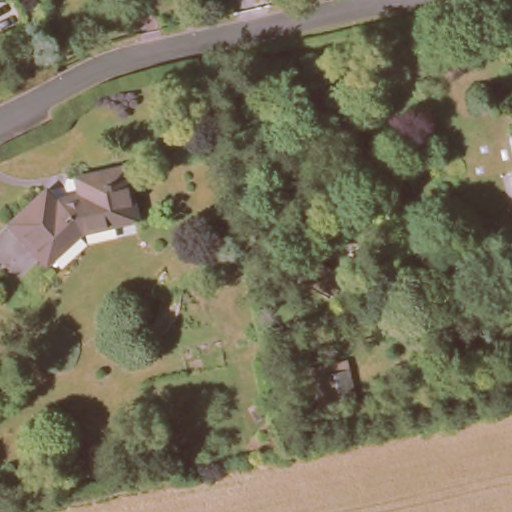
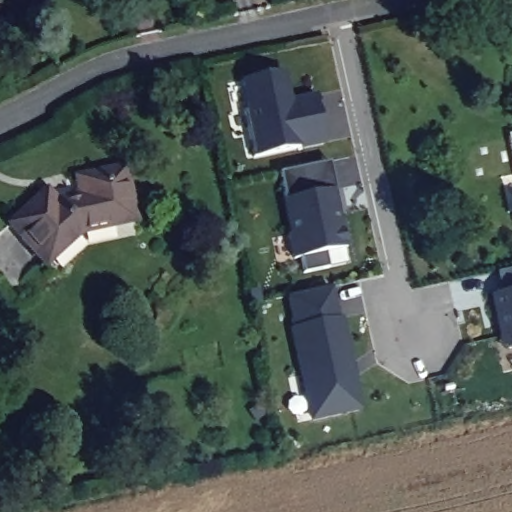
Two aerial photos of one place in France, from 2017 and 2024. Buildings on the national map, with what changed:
new [(316,112),(323,144),(252,160),(242,112),(247,112),(241,82),(282,74),(292,117),(316,112)]
new [(316,97),(319,112),(316,113),(316,112),(292,117),(289,103),(316,97)]
unchanged [(512,133),(512,158),(507,135),(512,133)]
new [(334,210),(335,217),(338,217),(344,250),(324,254),(326,270),(301,275),(297,260),(291,261),(285,237),(289,236),(276,175),(306,168),(329,164),(334,191),(339,209),(334,210)]
unchanged [(78,198),(74,181),(121,170),(133,222),(81,233),(73,199),(78,198)]
unchanged [(9,224),(45,192),(53,202),(73,199),(81,233),(76,234),(41,262),(9,224)]
demolished [(299,275),(311,257),(341,276),(330,294),(299,275)]
new [(512,270),(512,347),(511,347),(501,337),(492,296),(501,293),(497,273),(512,270)]
new [(329,288),(336,319),(340,319),(350,366),(349,366),(352,381),(351,381),(357,410),(311,420),(302,376),(301,377),(291,330),(294,329),(288,297),(329,288)]
demolished [(316,375),(344,368),(351,400),(324,406),(316,375)]

